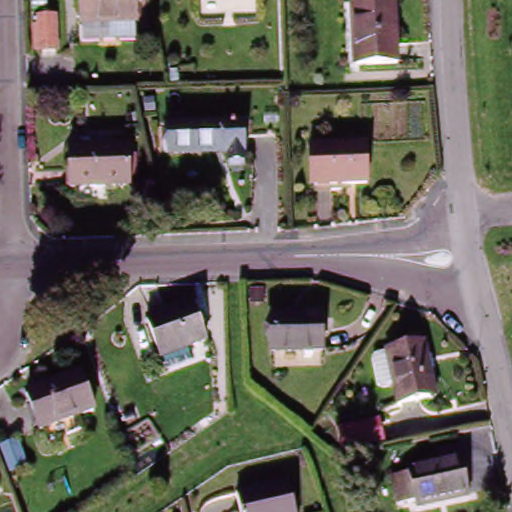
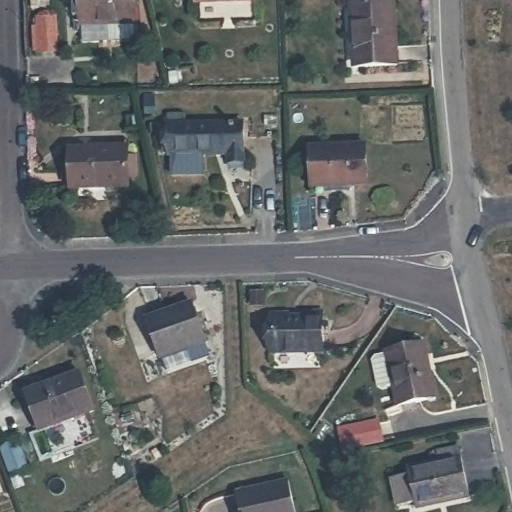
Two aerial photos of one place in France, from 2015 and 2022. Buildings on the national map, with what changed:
unchanged [(84,0),(136,0),(137,38),(85,38),(84,0)]
unchanged [(199,0),(258,0),(259,1),(199,2),(199,0)]
unchanged [(355,0),(387,0),(389,39),(397,40),(397,63),(358,63),(355,0)]
unchanged [(170,122),(240,123),(241,166),(222,166),(222,158),(170,158),(170,122)]
unchanged [(315,185),(314,145),(365,144),(367,184),(315,185)]
unchanged [(73,189),(72,151),(127,150),(130,189),(73,189)]
unchanged [(187,342),(196,354),(174,372),(140,327),(179,295),(205,328),(187,342)]
unchanged [(324,353),(272,352),(272,317),(305,318),(305,310),(324,310),(324,353)]
unchanged [(438,398),(402,407),(399,392),(387,394),(383,387),(380,373),(379,361),(391,358),(390,354),(425,345),(438,398)]
unchanged [(44,429),(29,392),(75,372),(90,410),(44,429)]
unchanged [(375,416),(380,433),(342,442),(339,424),(375,416)]
unchanged [(15,467),(7,443),(20,439),(29,462),(15,467)]
unchanged [(419,508),(418,504),(402,507),(396,479),(411,475),(410,472),(442,466),(440,454),(462,449),(474,496),(419,508)]
unchanged [(242,490),(289,480),(295,512),(246,512),(242,490)]

